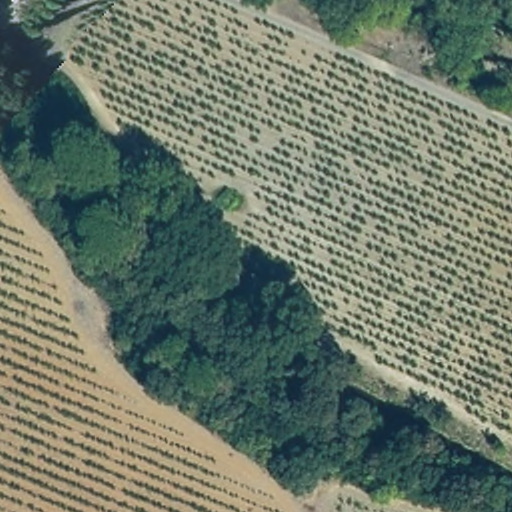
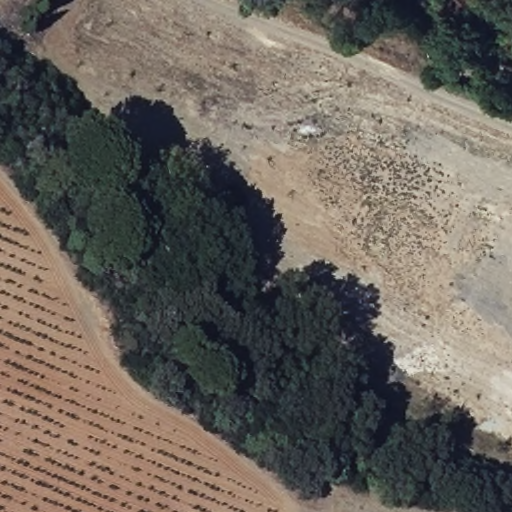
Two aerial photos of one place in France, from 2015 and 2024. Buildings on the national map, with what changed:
unchanged [(241,199),(236,209),(224,201),(227,192),(241,199)]

